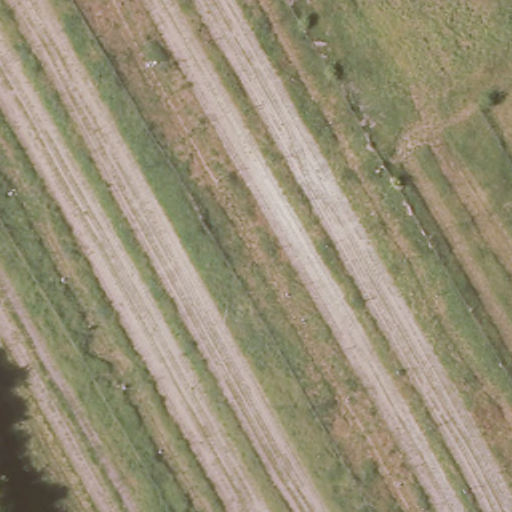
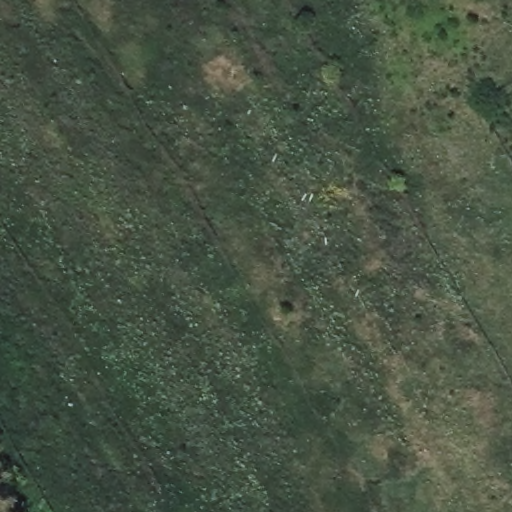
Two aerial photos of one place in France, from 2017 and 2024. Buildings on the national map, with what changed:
[]

